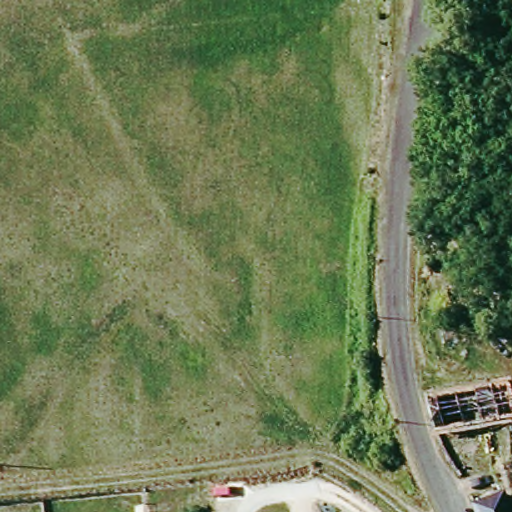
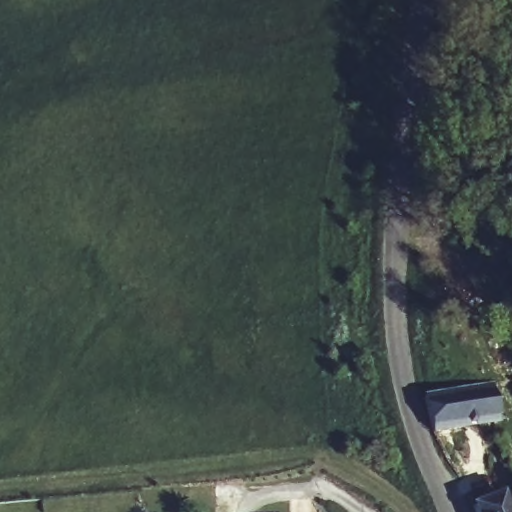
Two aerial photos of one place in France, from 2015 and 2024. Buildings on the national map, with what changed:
demolished [(512,385),(512,419),(429,431),(420,395),(512,385)]
unchanged [(502,492),(510,512),(471,512),(468,505),(502,492)]

